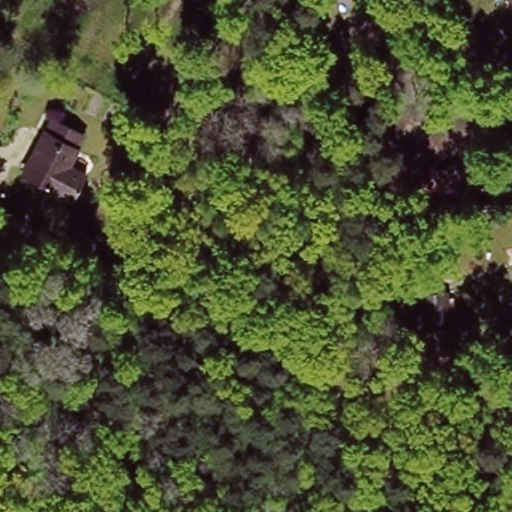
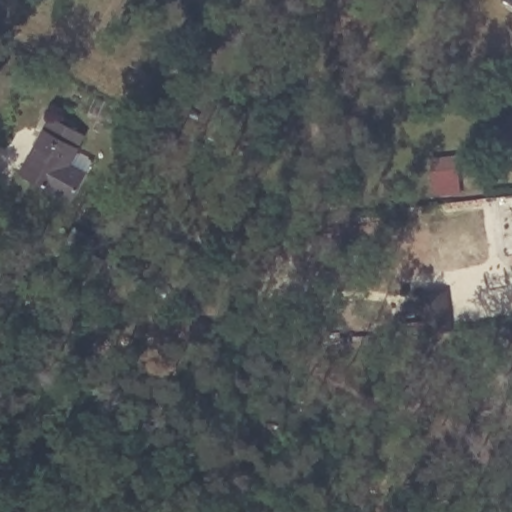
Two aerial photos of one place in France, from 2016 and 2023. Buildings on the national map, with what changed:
unchanged [(512,3),(507,0),(512,0),(512,3)]
unchanged [(512,115),(512,144),(498,126),(512,115)]
unchanged [(90,135),(60,187),(36,174),(43,161),(38,155),(60,119),(90,135)]
unchanged [(465,162),(466,177),(447,180),(445,165),(465,162)]
unchanged [(445,285),(450,322),(422,326),(416,288),(445,285)]

